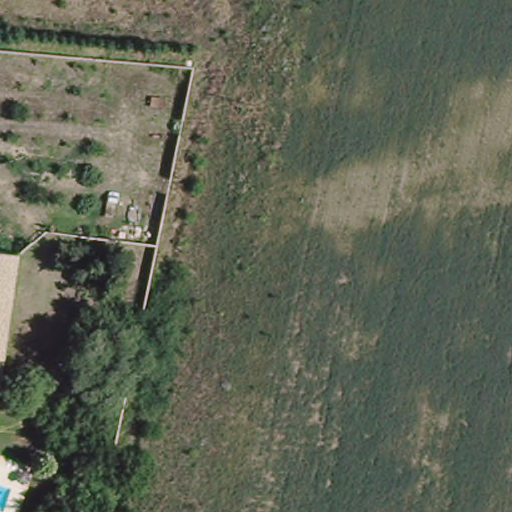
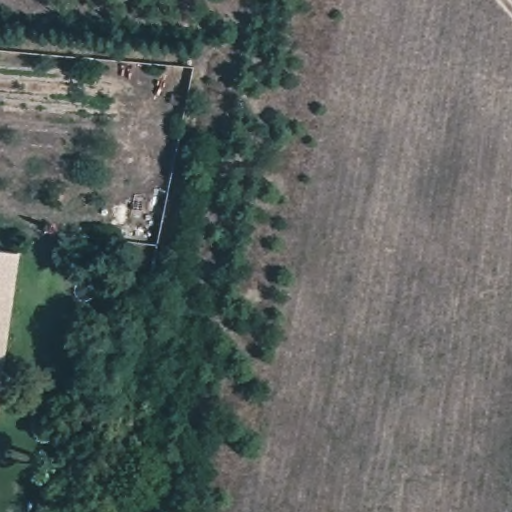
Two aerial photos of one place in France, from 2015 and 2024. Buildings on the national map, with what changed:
unchanged [(0,389),(0,249),(20,251),(0,389)]

